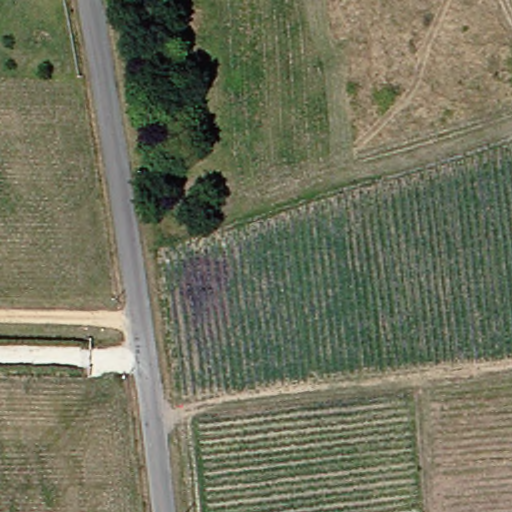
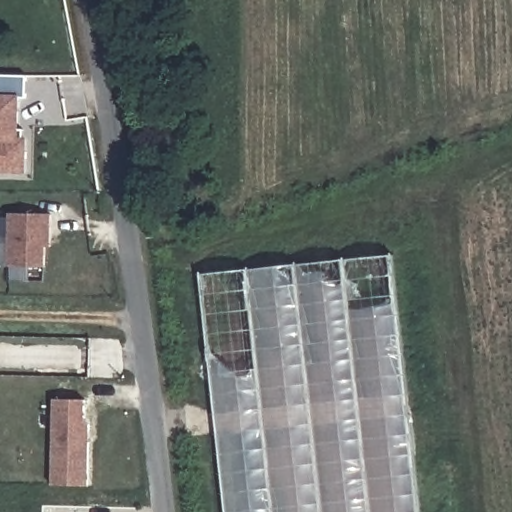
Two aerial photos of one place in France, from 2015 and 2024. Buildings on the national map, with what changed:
new [(22,99),(14,99),(14,130),(21,130),(21,141),(24,141),(23,173),(0,172),(0,76),(23,76),(22,99)]
unchanged [(10,213),(51,215),(51,247),(47,247),(47,268),(9,266),(10,213)]
new [(393,255),(420,512),(221,512),(196,273),(391,257),(393,255)]
new [(84,400),(84,419),(88,424),(88,430),(88,442),(87,486),(51,485),(53,399),(84,400)]

